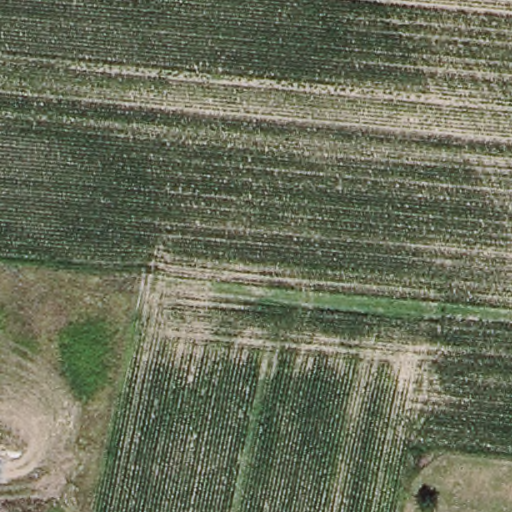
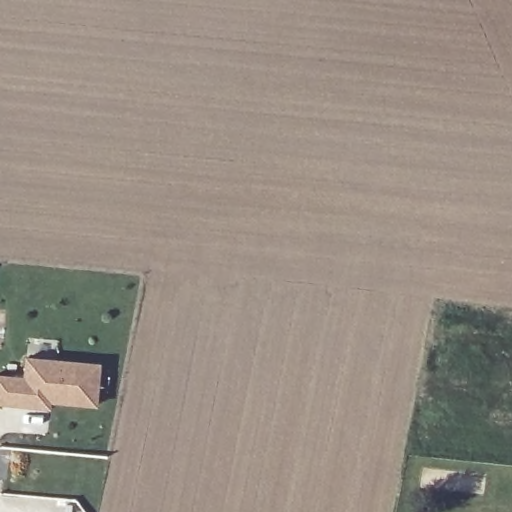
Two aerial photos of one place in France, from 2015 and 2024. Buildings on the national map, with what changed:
new [(0,404),(0,376),(25,379),(27,358),(101,366),(97,406),(51,401),(50,408),(25,406),(0,404)]

